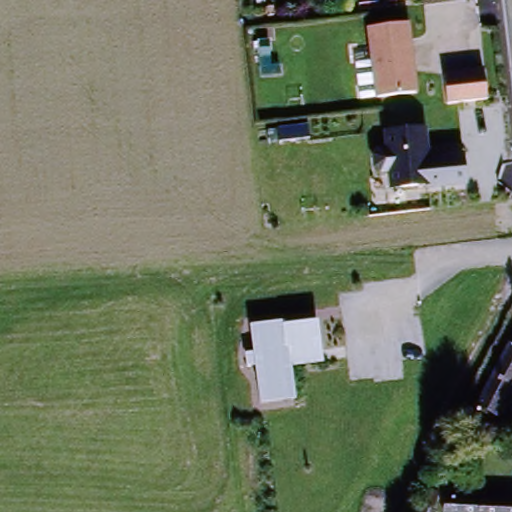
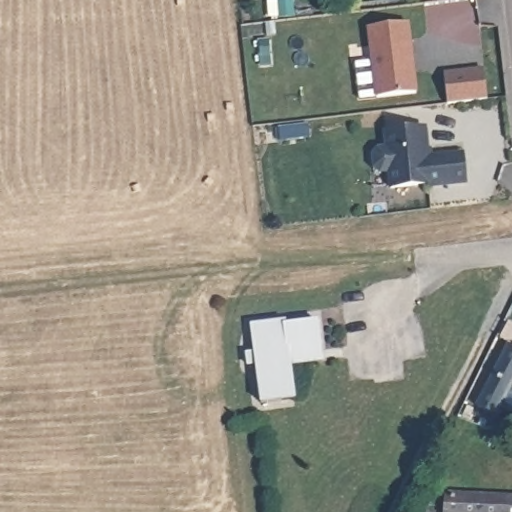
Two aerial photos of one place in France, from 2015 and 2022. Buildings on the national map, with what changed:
unchanged [(363,31),(406,25),(412,94),(371,97),(363,31)]
unchanged [(444,75),(483,70),(488,99),(447,106),(444,75)]
unchanged [(372,171),(370,158),(378,150),(377,135),(419,131),(420,150),(429,150),(430,157),(456,155),(461,185),(424,189),(423,185),(386,189),(384,174),(376,176),(372,171)]
unchanged [(286,322),(287,325),(319,321),(324,364),(292,368),(296,401),(259,405),(250,326),(286,322)]
unchanged [(488,402),(508,351),(512,353),(512,392),(505,410),(488,402)]
unchanged [(460,501),(460,498),(485,497),(512,494),(512,512),(444,512),(443,502),(460,501)]
unchanged [(437,512),(424,512),(428,504),(439,508),(437,512)]

